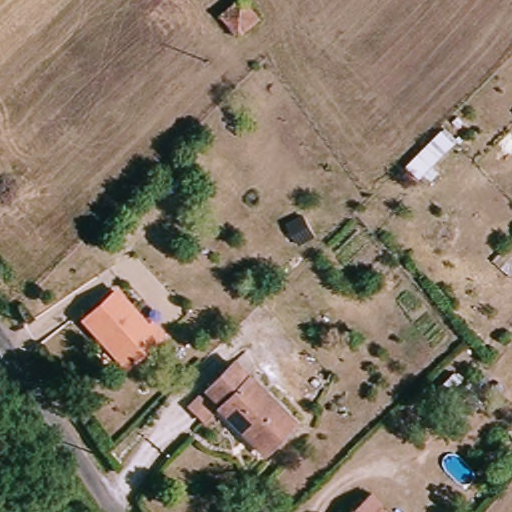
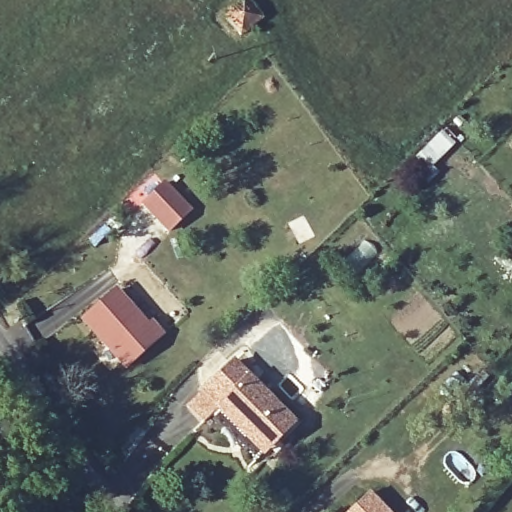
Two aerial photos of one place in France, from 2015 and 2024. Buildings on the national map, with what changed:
unchanged [(220,19),(229,9),(242,2),(259,24),(246,32),(238,40),(220,19)]
unchanged [(422,154),(443,132),(454,142),(432,164),(422,154)]
new [(195,210),(169,235),(141,204),(166,180),(195,210)]
unchanged [(166,336),(124,373),(76,323),(109,291),(134,316),(151,321),(166,336)]
unchanged [(201,398),(229,368),(293,426),(263,455),(201,398)]
unchanged [(381,512),(348,512),(365,496),(381,512)]

